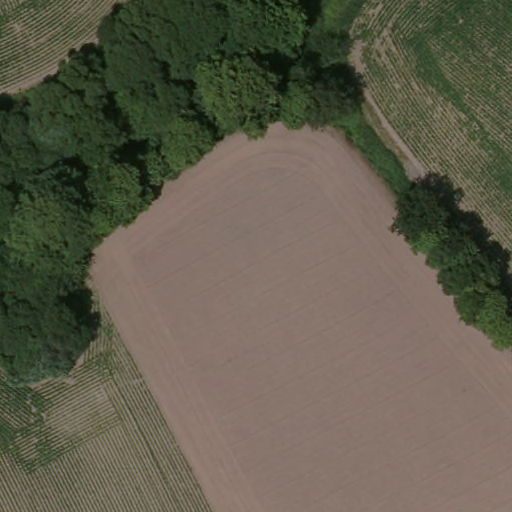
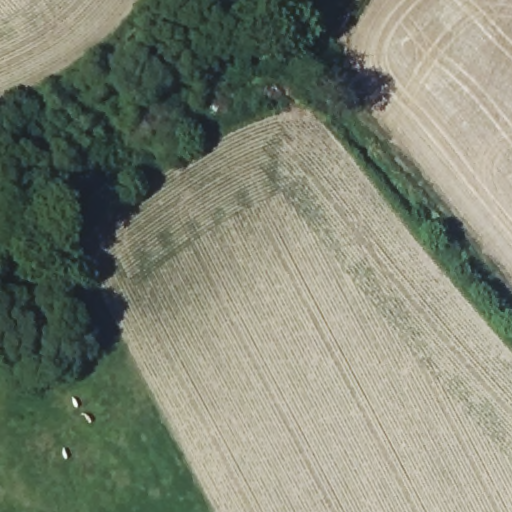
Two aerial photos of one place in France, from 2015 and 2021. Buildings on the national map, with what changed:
[]

